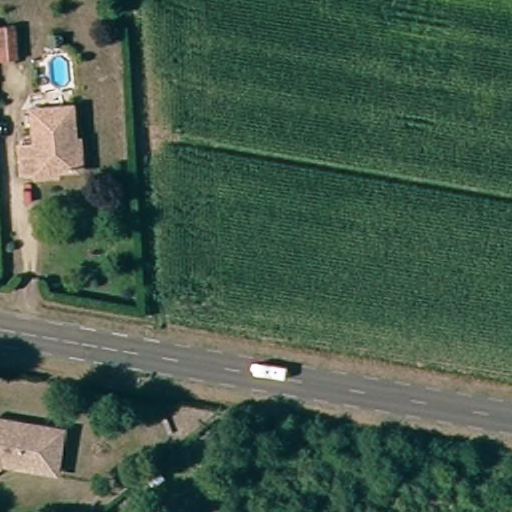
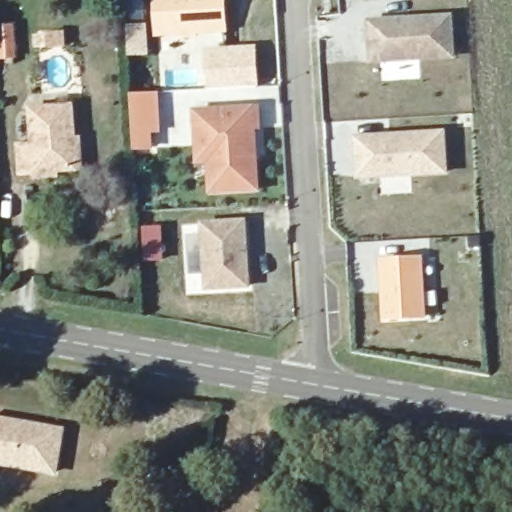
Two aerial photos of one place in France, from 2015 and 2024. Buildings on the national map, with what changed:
new [(153,0),(226,0),(228,32),(155,36),(153,0)]
new [(454,13),(456,60),(368,65),(366,18),(454,13)]
unchanged [(21,61),(0,61),(0,36),(21,35),(21,61)]
new [(254,45),(256,83),(209,86),(207,48),(254,45)]
new [(137,149),(135,133),(132,94),(157,92),(160,130),(151,131),(152,148),(137,149)]
new [(260,191),(210,195),(208,165),(196,166),(194,109),(253,105),(260,105),(261,127),(255,127),(260,191)]
unchanged [(19,145),(35,145),(35,111),(78,113),(79,170),(35,170),(19,169),(19,145)]
new [(445,129),(449,175),(356,180),(353,135),(445,129)]
new [(247,219),(251,288),(204,291),(200,222),(247,219)]
new [(423,256),(426,320),(382,322),(378,259),(423,256)]
unchanged [(54,470),(0,463),(0,421),(60,429),(54,470)]

